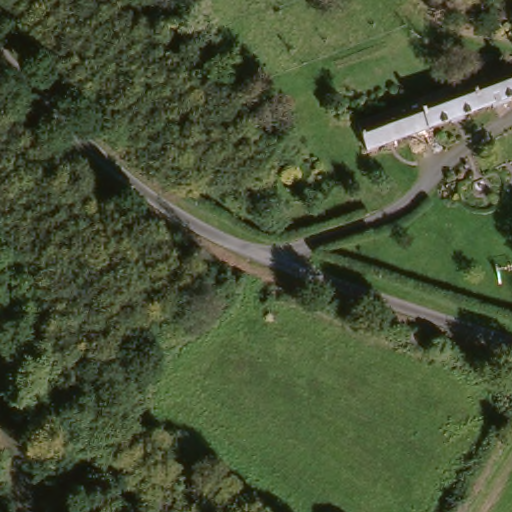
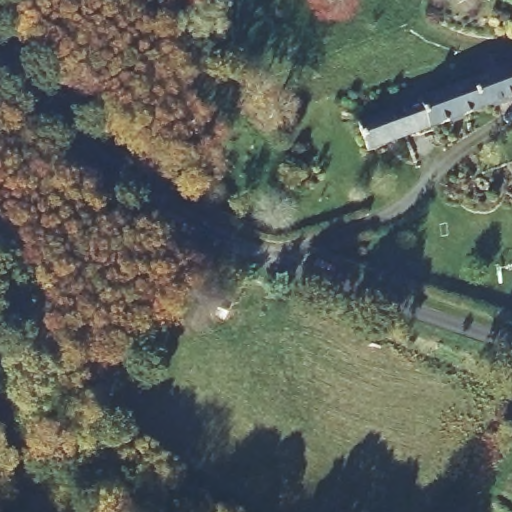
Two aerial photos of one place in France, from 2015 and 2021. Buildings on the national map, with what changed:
unchanged [(364,150),(355,124),(488,84),(512,77),(512,105),(364,150)]

